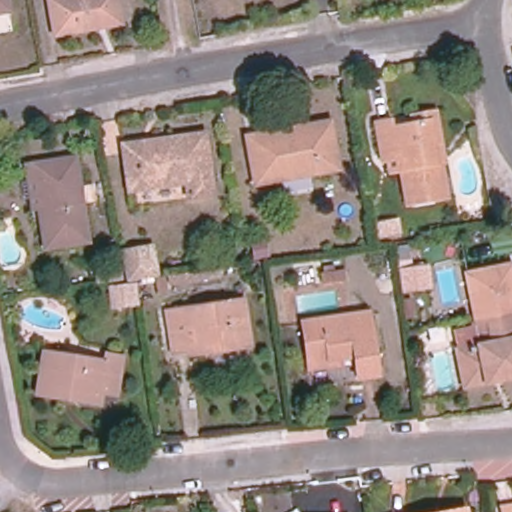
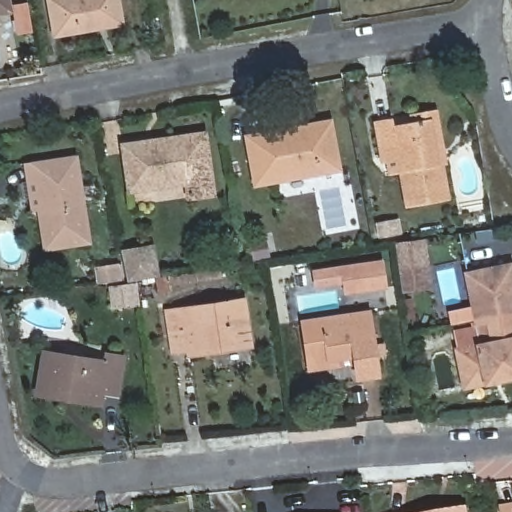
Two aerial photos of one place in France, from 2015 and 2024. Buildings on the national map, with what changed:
unchanged [(10,10),(0,12),(0,0),(8,0),(10,10)]
unchanged [(122,23),(55,35),(50,0),(117,0),(122,23)]
unchanged [(407,205),(401,170),(389,172),(380,122),(390,121),(392,128),(412,124),(410,115),(438,110),(447,162),(442,163),(448,197),(407,205)]
unchanged [(340,170),(256,185),(247,136),(331,121),(340,170)]
unchanged [(214,194),(189,198),(187,183),(130,191),(124,145),(205,133),(214,194)]
unchanged [(45,249),(39,208),(33,209),(29,181),(27,165),(76,158),(89,242),(45,249)]
unchanged [(398,245),(410,240),(411,267),(429,267),(432,287),(400,291),(398,274),(398,245)]
unchanged [(101,270),(124,267),(121,250),(153,245),(159,276),(126,281),(103,284),(101,270)]
unchanged [(167,288),(163,272),(221,264),(226,277),(167,288)]
unchanged [(456,333),(479,328),(477,319),(467,274),(510,265),(512,276),(512,377),(467,387),(456,333)]
unchanged [(347,281),(323,285),(321,273),(345,269),(347,281)]
unchanged [(140,300),(117,302),(115,285),(138,282),(140,300)]
unchanged [(188,350),(173,352),(167,311),(243,300),(250,346),(218,350),(189,354),(188,350)]
unchanged [(309,363),(303,322),(368,313),(377,373),(357,376),(355,363),(310,369),(309,363)]
unchanged [(64,398),(37,394),(44,352),(106,362),(107,354),(123,357),(117,394),(103,392),(101,404),(64,398)]
unchanged [(512,506),(512,512),(503,512),(503,508),(512,506)]
unchanged [(464,512),(453,512),(464,510),(464,512)]

